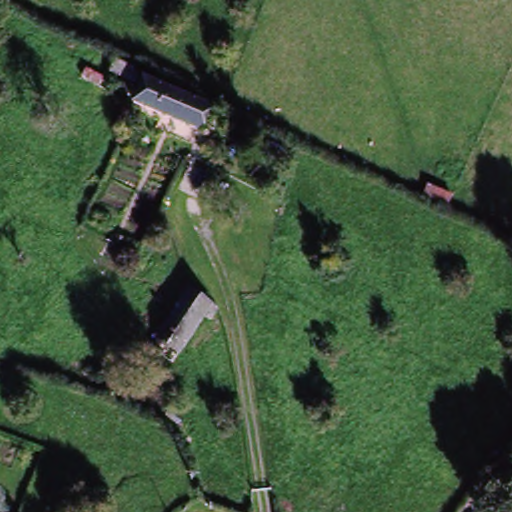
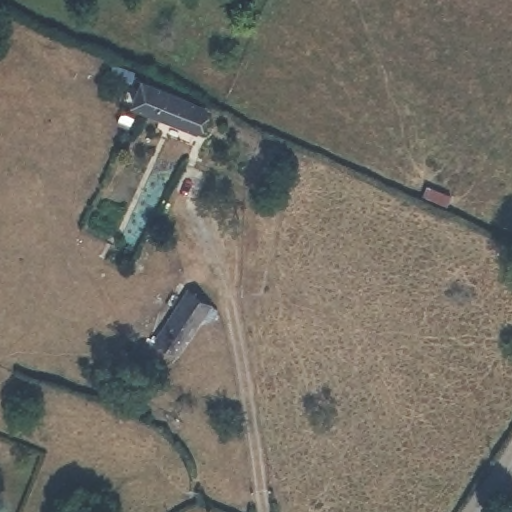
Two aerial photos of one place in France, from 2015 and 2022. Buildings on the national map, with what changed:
unchanged [(148,82),(143,92),(117,80),(122,70),(148,82)]
unchanged [(214,117),(203,139),(140,110),(147,95),(150,88),(214,117)]
unchanged [(168,366),(150,352),(180,307),(205,324),(200,333),(193,329),(168,366)]

